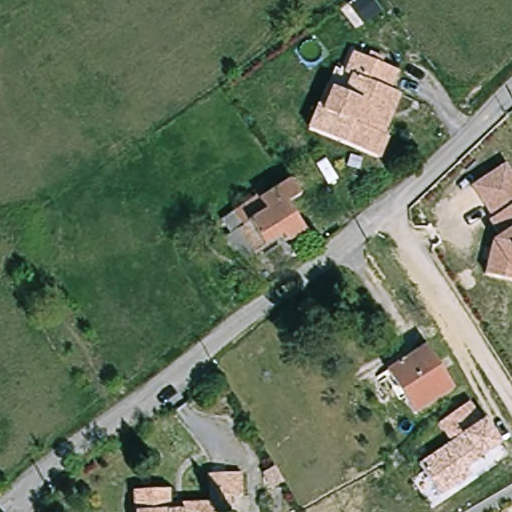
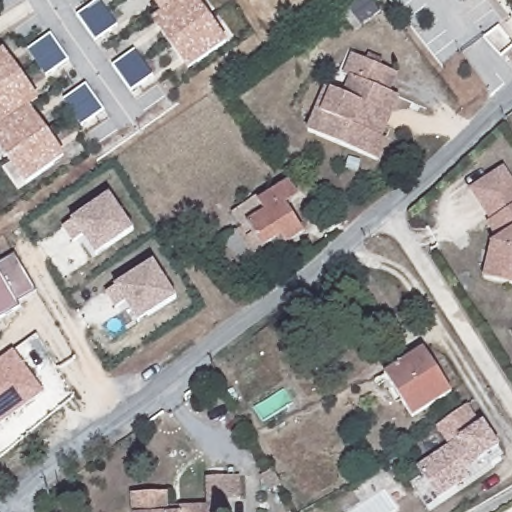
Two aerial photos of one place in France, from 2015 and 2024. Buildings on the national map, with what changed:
new [(189,71),(152,20),(162,13),(152,0),(197,0),(228,41),(189,71)]
new [(509,0),(511,0),(510,1),(509,0)]
new [(3,49),(40,100),(30,106),(65,156),(26,185),(0,149),(0,51),(3,49)]
unchanged [(385,139),(376,159),(307,130),(315,110),(325,87),(331,90),(343,95),(350,77),(343,74),(352,54),(365,59),(367,54),(381,60),(378,65),(395,72),(387,91),(390,92),(397,95),(385,124),(380,136),(385,139)]
unchanged [(479,275),(484,260),(487,250),(489,242),(496,238),(485,220),(489,219),(468,186),(501,166),(512,183),(512,284),(502,281),(479,275)]
unchanged [(308,231),(281,249),(267,257),(263,251),(250,260),(234,235),(237,233),(233,228),(238,225),(241,230),(246,227),(237,214),(261,197),(264,201),(294,181),(304,196),(290,205),(308,231)]
new [(110,194),(135,230),(96,257),(72,221),(110,194)]
new [(0,273),(0,265),(15,255),(35,291),(17,303),(20,306),(0,318),(0,274),(0,273)]
new [(154,260),(178,297),(139,324),(114,287),(154,260)]
new [(45,392),(0,424),(0,360),(14,350),(45,392)]
unchanged [(449,391),(412,415),(387,374),(424,351),(449,391)]
unchanged [(483,422),(499,447),(477,462),(465,472),(470,480),(440,499),(419,466),(448,445),(437,426),(467,405),(483,422)]
unchanged [(132,495),(165,492),(166,507),(180,506),(207,505),(205,475),(227,474),(239,473),(241,496),(228,497),(229,512),(133,512),(132,495)]

